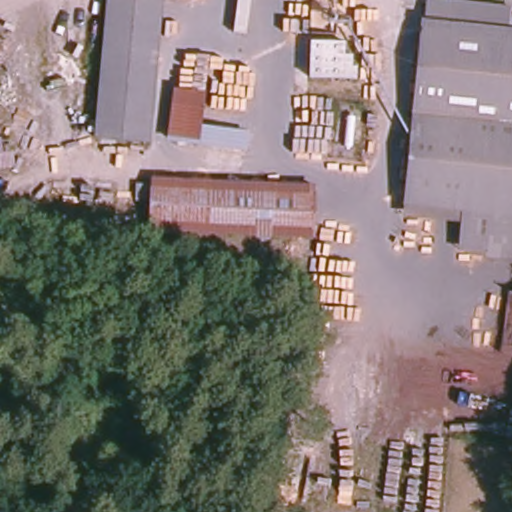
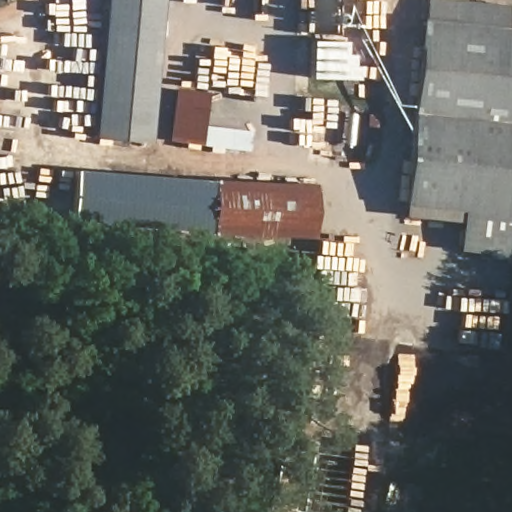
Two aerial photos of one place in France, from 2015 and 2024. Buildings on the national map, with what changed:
unchanged [(149,142),(95,137),(108,0),(162,0),(149,142)]
unchanged [(511,9),(509,30),(512,30),(512,256),(460,250),(465,210),(405,204),(423,21),(426,21),(428,0),(437,0),(511,9)]
unchanged [(345,55),(352,55),(353,66),(357,66),(357,79),(310,78),(311,40),(345,42),(345,55)]
unchanged [(200,128),(245,132),(245,150),(172,142),(177,91),(204,94),(200,128)]
unchanged [(0,141),(1,141),(8,140),(12,164),(10,165),(0,166),(0,141)]
new [(150,230),(70,225),(74,169),(152,175),(153,179),(150,230)]
unchanged [(314,186),(312,236),(150,230),(153,179),(314,186)]

